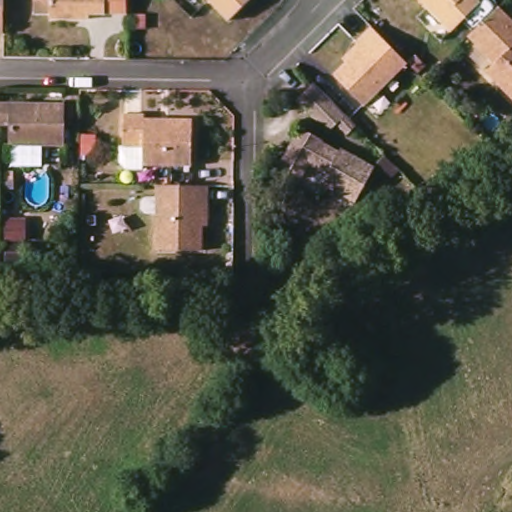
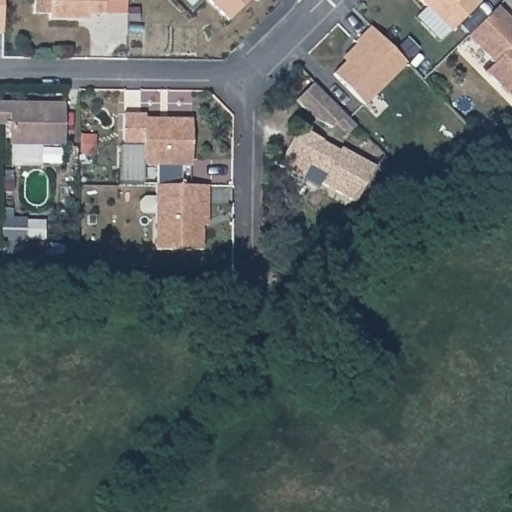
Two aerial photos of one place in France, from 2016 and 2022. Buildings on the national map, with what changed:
unchanged [(1,35),(0,35),(0,0),(1,0),(1,35)]
unchanged [(110,13),(110,14),(94,14),(94,19),(55,19),(55,14),(39,14),(39,0),(132,0),(132,13),(110,13)]
unchanged [(204,0),(249,0),(227,22),(204,0)]
unchanged [(416,0),(474,0),(478,4),(448,33),(416,0)]
unchanged [(492,65),(466,38),(496,8),(512,24),(512,102),(483,74),(492,65)]
unchanged [(405,65),(362,107),(332,76),(344,64),(338,58),(353,44),(369,28),(405,65)]
unchanged [(346,136),(335,125),(331,130),(312,120),(295,102),(312,85),(344,117),(355,127),(346,136)]
unchanged [(70,100),(69,143),(14,142),(15,122),(0,122),(0,100),(70,100)]
unchanged [(147,167),(147,171),(131,170),(124,164),(124,148),(127,148),(127,116),(148,116),(148,121),(196,121),(195,167),(147,167)]
unchanged [(292,139),(296,141),(302,131),(321,142),(321,143),(338,153),(340,150),(373,169),(353,204),(320,185),(325,176),(307,166),(300,180),(277,168),(287,150),(292,139)]
unchanged [(100,152),(85,152),(85,137),(100,137),(100,152)]
unchanged [(206,228),(201,227),(201,252),(154,252),(155,186),(207,187),(207,206),(206,228)]

